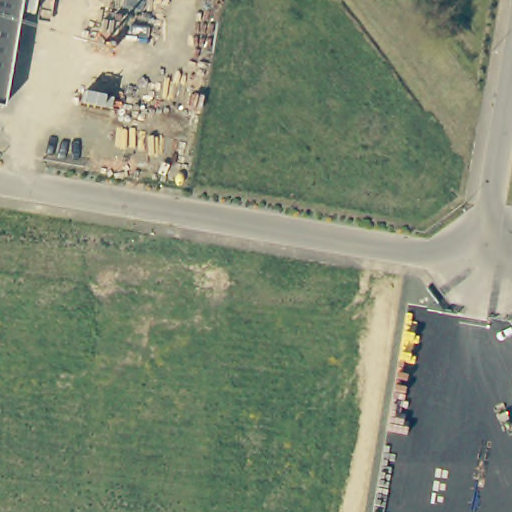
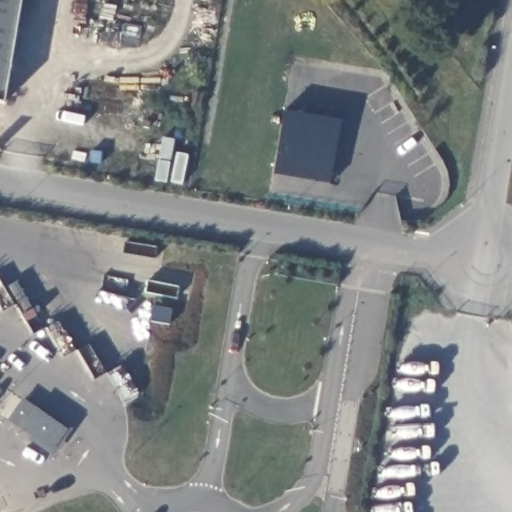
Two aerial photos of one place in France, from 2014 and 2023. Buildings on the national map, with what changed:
unchanged [(3,100),(0,100),(0,0),(20,0),(3,100)]
new [(329,184),(272,175),(284,111),(341,120),(329,184)]
new [(71,428),(54,456),(28,440),(31,436),(7,421),(22,399),(34,408),(38,411),(41,407),(71,428)]

